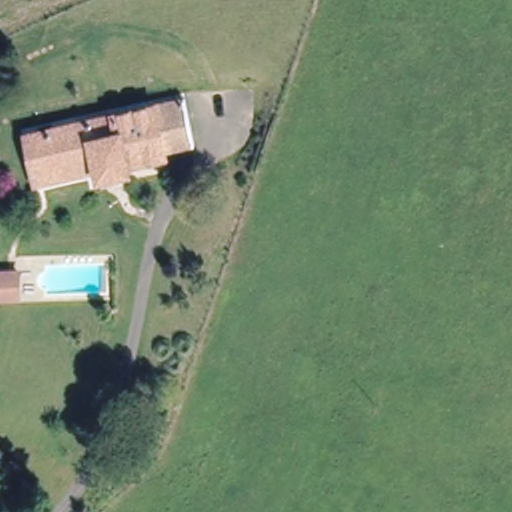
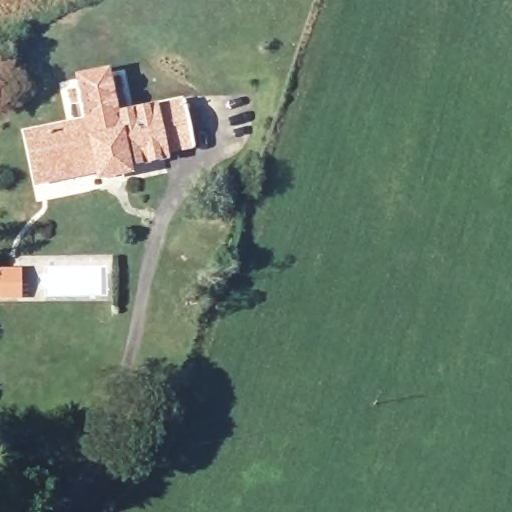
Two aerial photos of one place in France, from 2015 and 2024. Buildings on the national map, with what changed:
new [(82,117),(73,76),(108,69),(116,109),(82,117)]
unchanged [(86,147),(29,159),(22,131),(175,96),(184,140),(159,146),(160,152),(124,160),(125,164),(92,171),(90,165),(86,147)]
unchanged [(32,178),(29,159),(86,147),(90,165),(32,178)]

